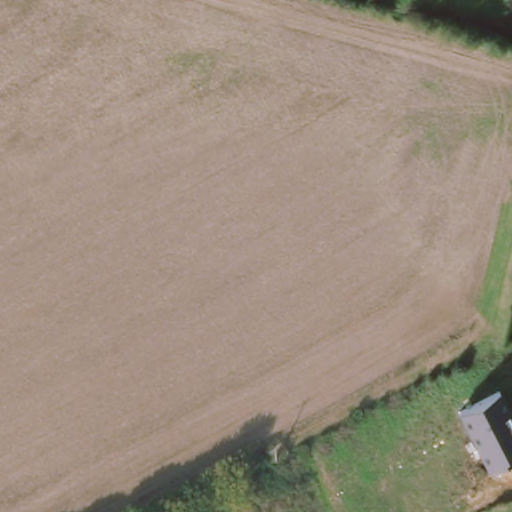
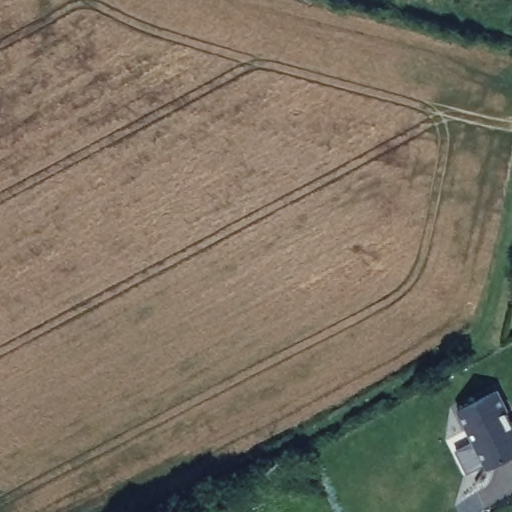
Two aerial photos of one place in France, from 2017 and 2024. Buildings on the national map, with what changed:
unchanged [(497,390),(512,418),(512,456),(487,469),(457,412),(497,390)]

